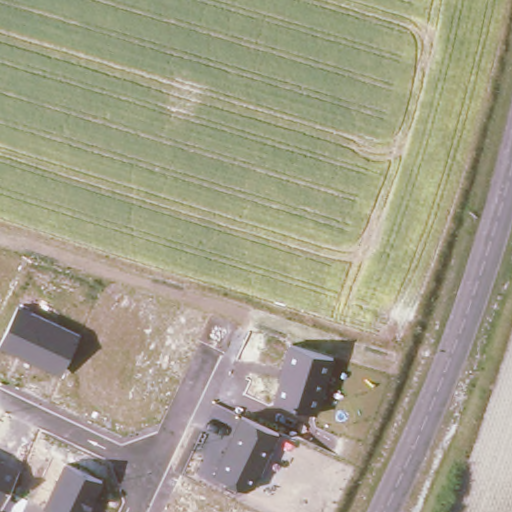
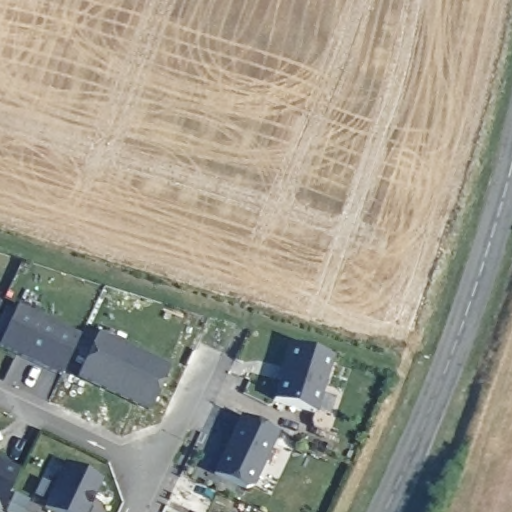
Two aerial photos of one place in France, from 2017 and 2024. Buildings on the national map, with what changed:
unchanged [(46,375),(0,354),(0,343),(15,312),(77,341),(61,376),(48,370),(46,375)]
new [(167,372),(148,416),(76,382),(95,339),(167,372)]
unchanged [(330,362),(312,418),(272,405),(282,373),(280,373),(287,349),(330,362)]
unchanged [(275,438),(247,497),(211,480),(239,421),(275,438)]
unchanged [(0,510),(0,458),(20,467),(0,510)]
unchanged [(103,480),(88,512),(54,512),(42,505),(64,461),(103,480)]

